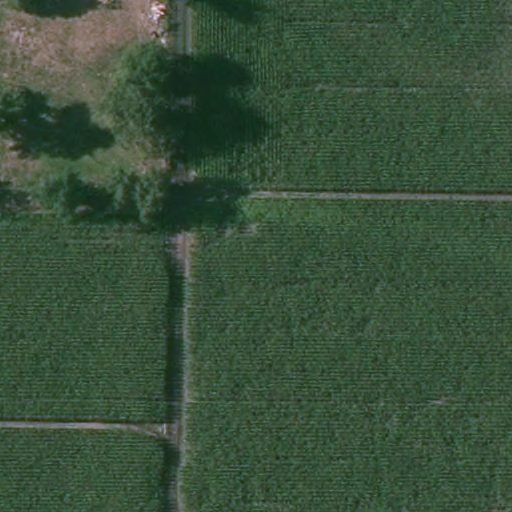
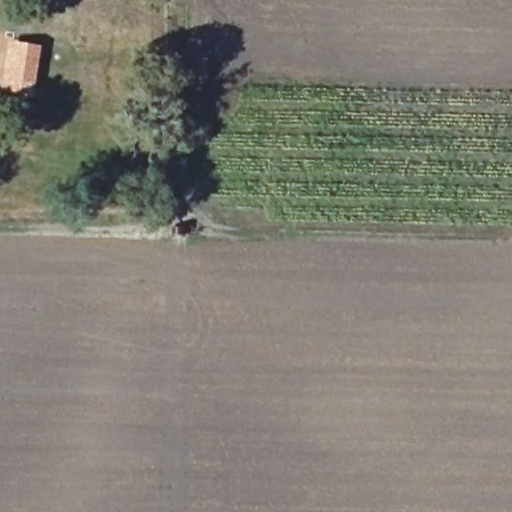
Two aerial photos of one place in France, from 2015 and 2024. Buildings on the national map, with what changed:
new [(5,40),(39,46),(32,85),(0,80),(0,77),(5,40)]

